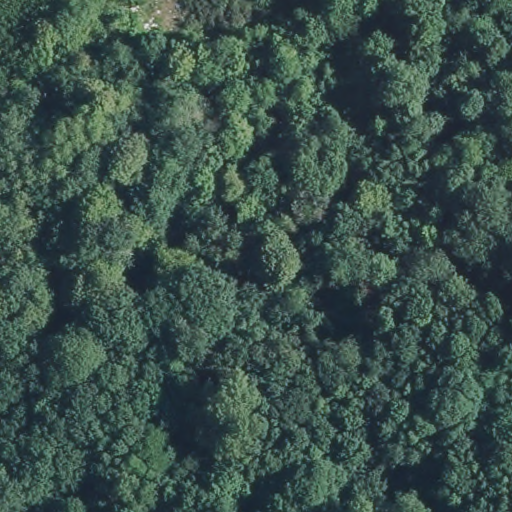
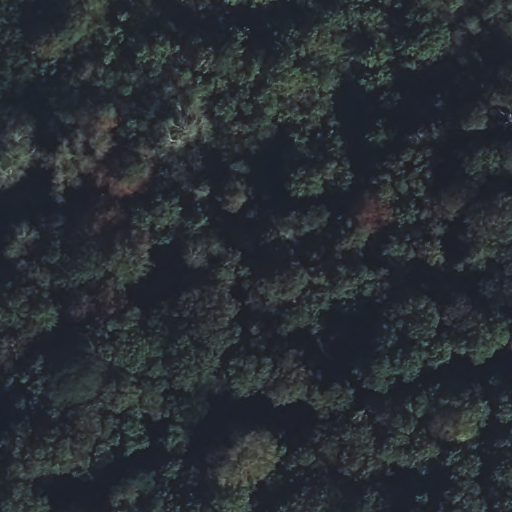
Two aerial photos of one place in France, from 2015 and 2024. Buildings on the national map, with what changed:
[]

